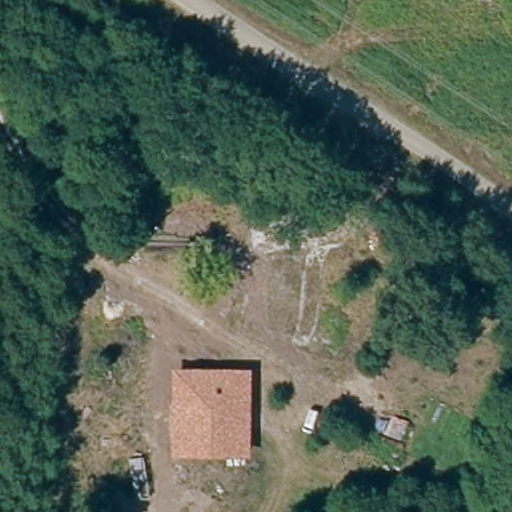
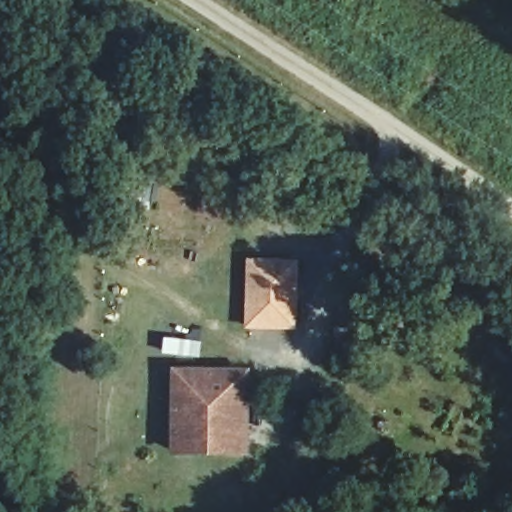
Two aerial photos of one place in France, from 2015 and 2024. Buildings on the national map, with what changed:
new [(246,256),(299,259),(297,331),(244,329),(246,256)]
new [(163,336),(202,340),(200,356),(162,354),(163,336)]
unchanged [(218,429),(182,428),(181,374),(247,375),(247,430),(243,430),(242,450),(217,450),(218,429)]

